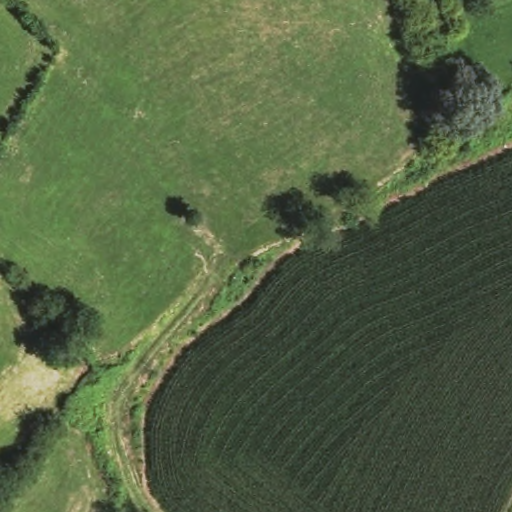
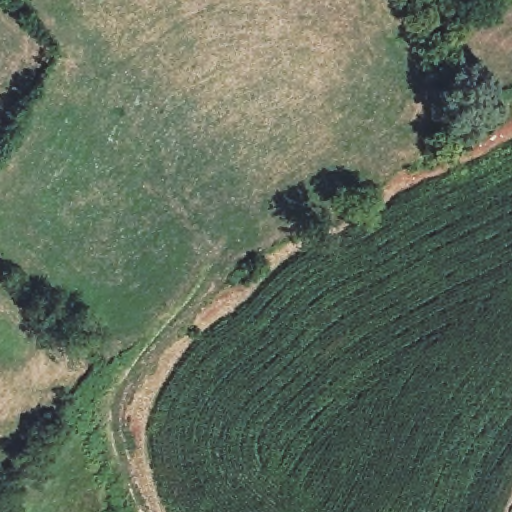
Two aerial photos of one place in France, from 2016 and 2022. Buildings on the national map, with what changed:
[]

